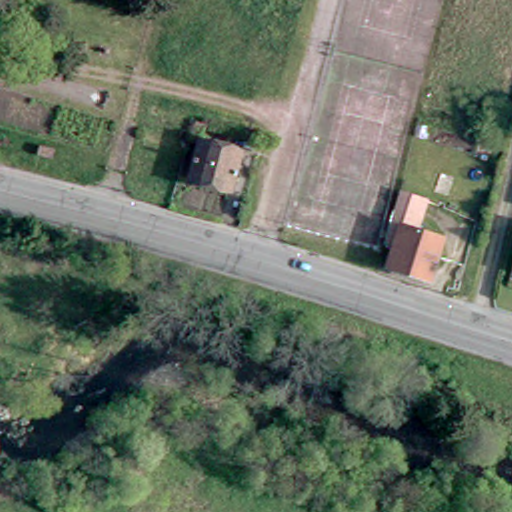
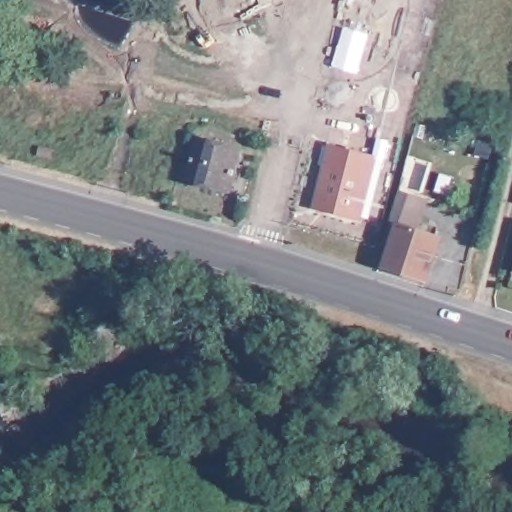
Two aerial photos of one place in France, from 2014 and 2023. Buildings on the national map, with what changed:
unchanged [(230,188),(187,176),(197,138),(239,150),(230,188)]
new [(324,145),(375,158),(360,222),(307,209),(324,145)]
demolished [(417,211),(425,182),(439,186),(440,181),(447,184),(437,218),(417,211)]
unchanged [(440,241),(427,283),(387,269),(392,250),(385,247),(394,211),(415,217),(420,219),(416,234),(435,240),(440,241)]

